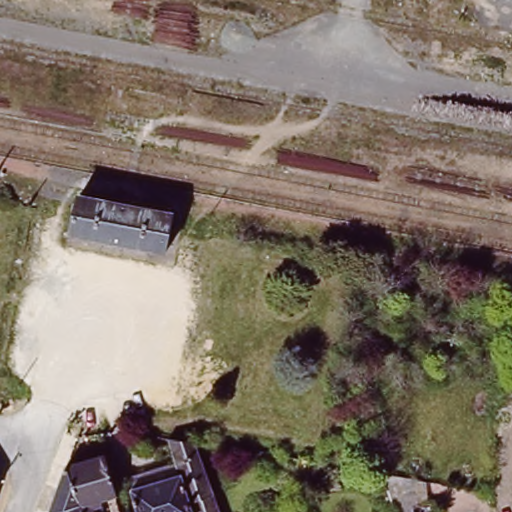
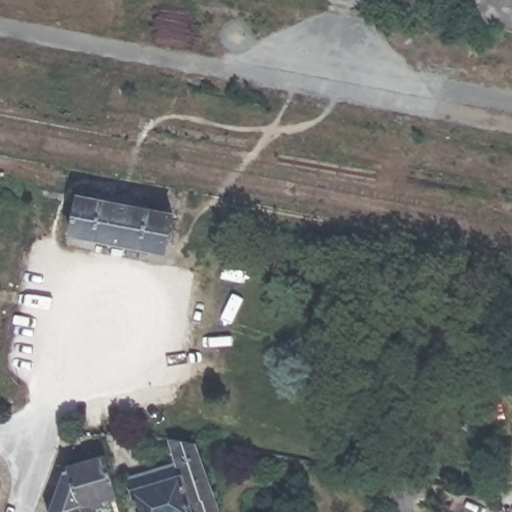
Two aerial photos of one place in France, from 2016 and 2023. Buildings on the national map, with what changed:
unchanged [(66,233),(75,193),(166,213),(157,252),(66,233)]
unchanged [(127,478),(174,465),(166,438),(195,442),(219,512),(137,512),(127,478)]
unchanged [(118,512),(107,512),(105,505),(90,510),(91,512),(77,512),(65,472),(102,460),(118,512)]
unchanged [(64,470),(65,472),(77,512),(49,512),(64,470)]

